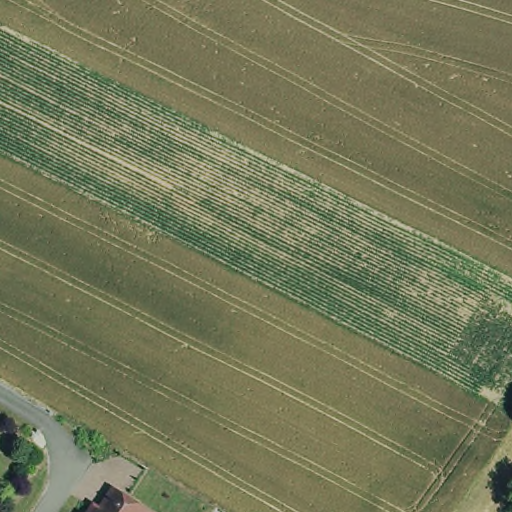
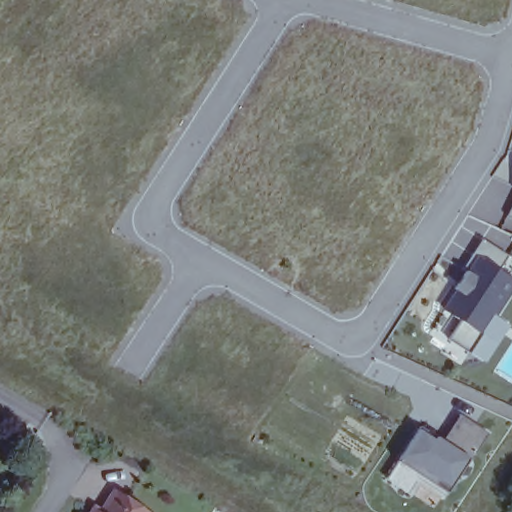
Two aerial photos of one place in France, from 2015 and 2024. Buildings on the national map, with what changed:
new [(510,215),(512,210),(512,216),(510,215)]
new [(500,316),(512,322),(512,323),(499,346),(482,335),(467,354),(450,338),(460,321),(439,311),(482,239),(508,255),(498,270),(512,280),(512,296),(500,316)]
new [(489,432),(445,498),(419,483),(412,495),(387,478),(420,430),(442,444),(462,415),(489,432)]
unchanged [(97,510),(112,486),(155,512),(90,512),(93,507),(97,510)]

